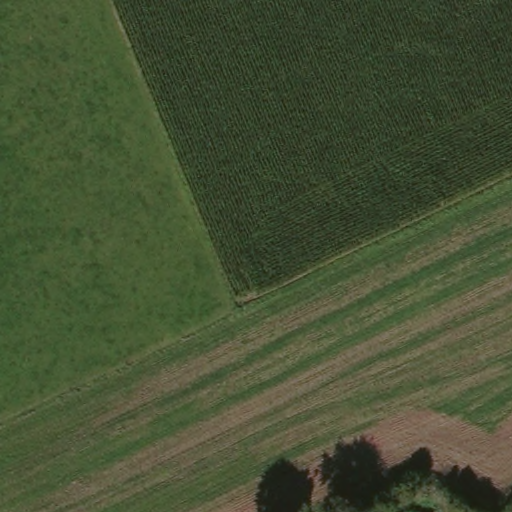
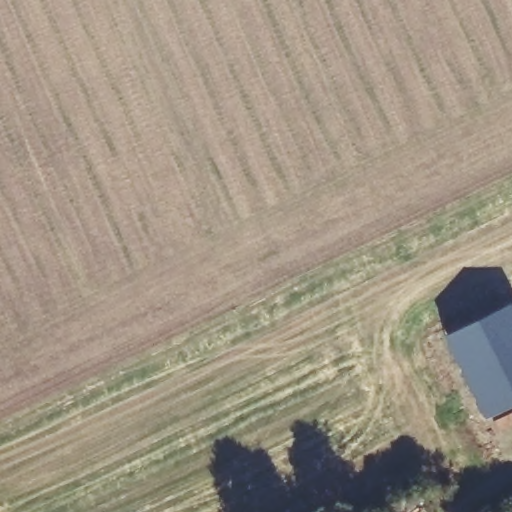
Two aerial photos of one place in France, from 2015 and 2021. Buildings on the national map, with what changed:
new [(512,406),(489,418),(448,335),(512,304),(512,406)]

